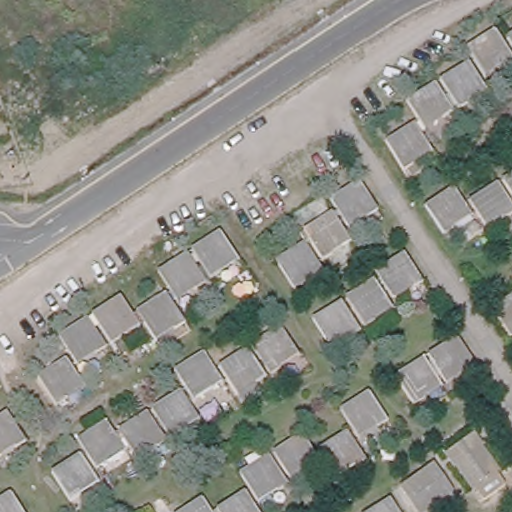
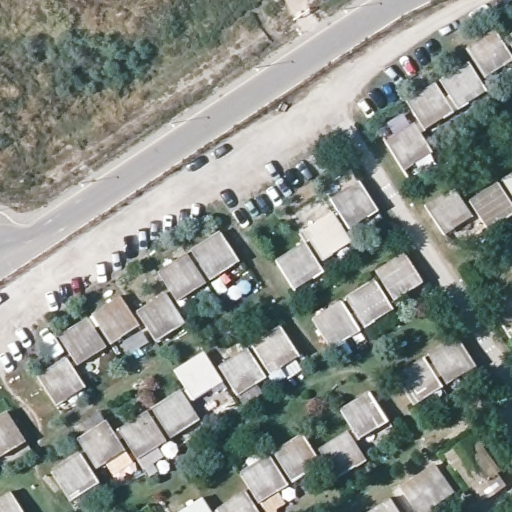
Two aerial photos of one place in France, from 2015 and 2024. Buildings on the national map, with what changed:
unchanged [(512,49),(512,55),(488,70),(470,43),(497,25),(512,49)]
unchanged [(510,33),(512,32),(512,35),(510,33)]
unchanged [(489,85),(461,104),(443,76),(471,58),(489,85)]
unchanged [(427,125),(410,97),(438,79),(455,107),(427,125)]
unchanged [(407,165),(389,137),(417,120),(435,147),(407,165)]
unchanged [(502,175),(512,168),(512,191),(502,175)]
unchanged [(330,195),(357,177),(375,205),(348,222),(330,195)]
unchanged [(487,224),(468,195),(495,178),(512,204),(512,207),(487,224)]
unchanged [(470,210),(442,229),(424,201),(452,183),(470,210)]
unchanged [(330,209),(348,237),(322,255),(303,227),(330,209)]
unchanged [(218,229),(237,257),(208,275),(190,246),(218,229)]
unchanged [(275,257),(302,239),(320,266),(292,285),(275,257)]
unchanged [(185,250),(203,278),(175,296),(157,267),(185,250)]
unchanged [(393,300),(375,271),(402,254),(420,282),(393,300)]
unchanged [(372,281),(391,310),(363,327),(345,298),(372,281)]
unchanged [(136,307),(163,291),(181,318),(155,336),(136,307)]
unchanged [(110,340),(92,311),(118,294),(137,322),(110,340)]
unchanged [(495,309),(512,298),(512,334),(495,309)]
unchanged [(312,320),(340,302),(357,331),(329,348),(312,320)]
unchanged [(59,332),(85,315),(104,343),(77,360),(59,332)]
unchanged [(297,351),(268,370),(250,340),(278,322),(297,351)]
unchanged [(445,379),(427,350),(455,332),(473,361),(445,379)]
unchanged [(245,344),(263,372),(236,390),(217,361),(245,344)]
unchanged [(192,395),(174,366),(202,349),(220,377),(192,395)]
unchanged [(37,371),(64,354),(82,383),(55,400),(37,371)]
unchanged [(393,370),(422,354),(440,382),(413,400),(393,370)]
unchanged [(178,387),(197,416),(170,432),(152,404),(178,387)]
unchanged [(363,433),(345,405),(372,387),(390,416),(363,433)]
unchanged [(22,435),(0,449),(0,409),(5,406),(22,435)]
unchanged [(145,408),(163,436),(135,453),(118,425),(145,408)]
unchanged [(77,433),(104,416),(122,445),(94,461),(77,433)]
unchanged [(350,427),(367,455),(340,472),(323,445),(350,427)]
unchanged [(323,458),(296,476),(277,447),(305,430),(323,458)]
unchanged [(475,440),(495,467),(472,483),(453,455),(475,440)]
unchanged [(97,477),(70,495),(50,465),(77,448),(97,477)]
unchanged [(262,497),(244,468),(271,451),(290,480),(262,497)]
unchanged [(449,483),(419,504),(400,477),(430,456),(449,483)]
unchanged [(248,487),(264,512),(226,512),(221,504),(248,487)]
unchanged [(26,512),(0,512),(0,500),(13,492),(26,512)]
unchanged [(217,512),(178,512),(177,511),(205,494),(217,512)]
unchanged [(392,495),(404,512),(365,512),(392,495)]

